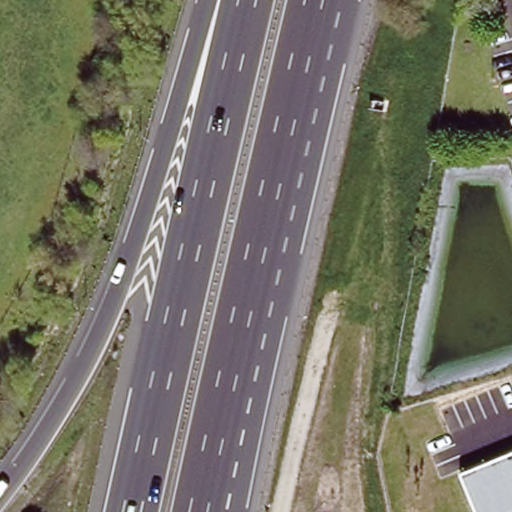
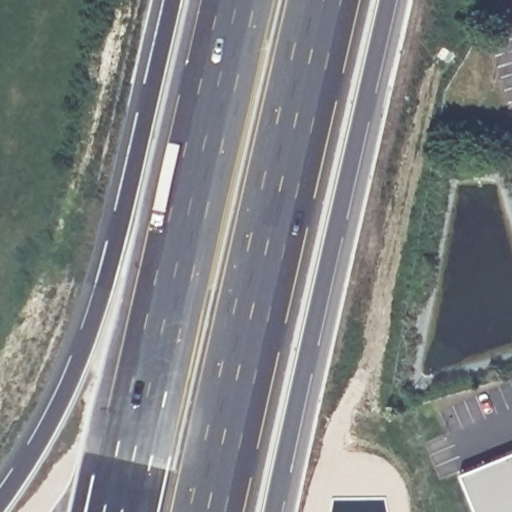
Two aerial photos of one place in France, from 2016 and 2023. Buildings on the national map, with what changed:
unchanged [(512,454),(512,512),(479,512),(463,474),(512,454)]

